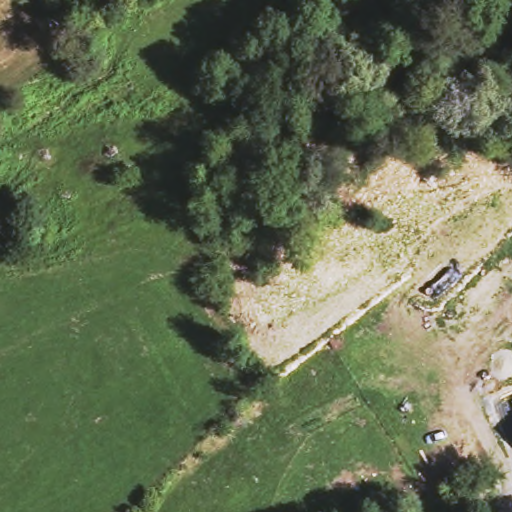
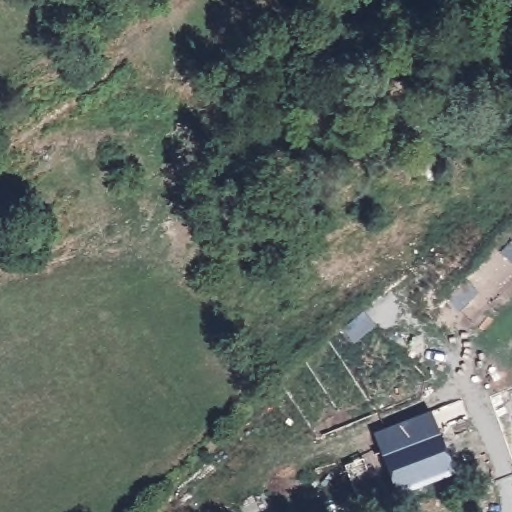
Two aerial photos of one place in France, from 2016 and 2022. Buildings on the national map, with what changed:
new [(377,436),(433,415),(439,432),(383,453),(377,436)]
new [(454,475),(398,495),(383,453),(439,432),(454,475)]

